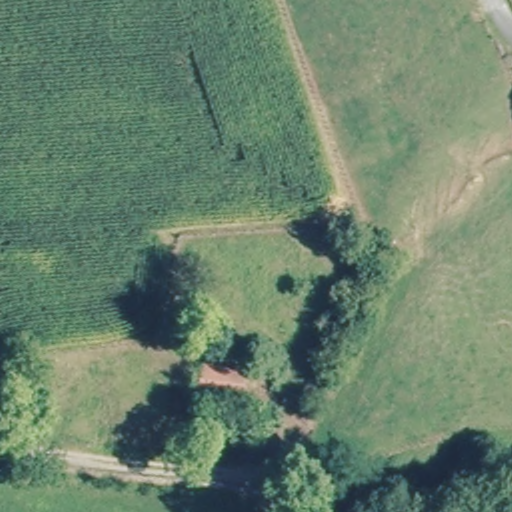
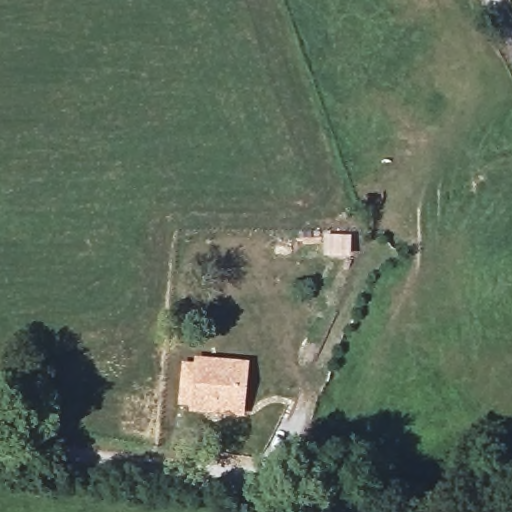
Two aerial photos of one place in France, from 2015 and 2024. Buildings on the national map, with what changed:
new [(182,361),(193,362),(194,356),(249,361),(244,416),(189,411),(189,406),(178,405),(182,361)]
unchanged [(231,448),(193,439),(200,413),(238,423),(231,448)]

